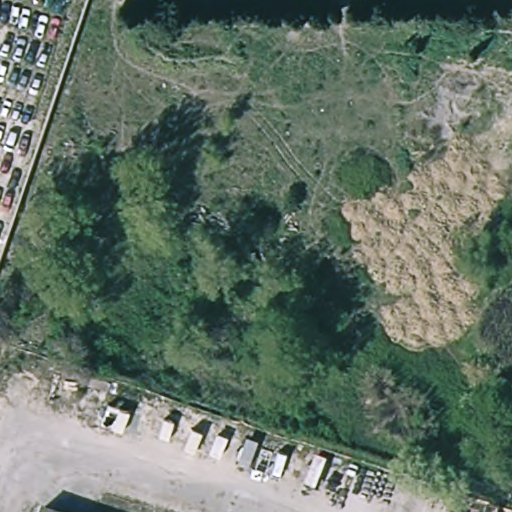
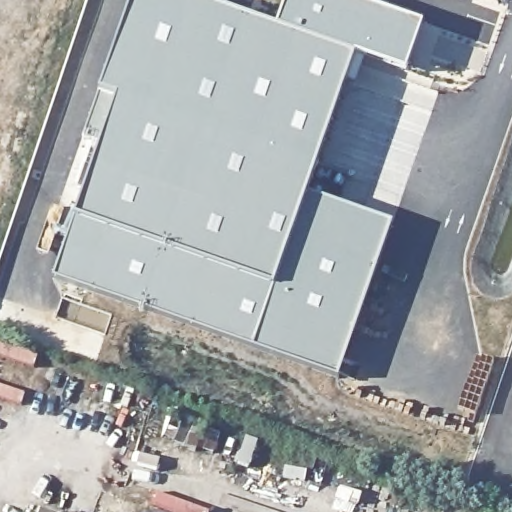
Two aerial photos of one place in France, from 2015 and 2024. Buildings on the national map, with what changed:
new [(53,278),(75,219),(100,144),(84,140),(99,92),(132,0),(197,0),(276,29),(287,0),(352,0),(424,25),(408,72),(356,55),(308,192),(394,224),(339,378),(53,278)]

